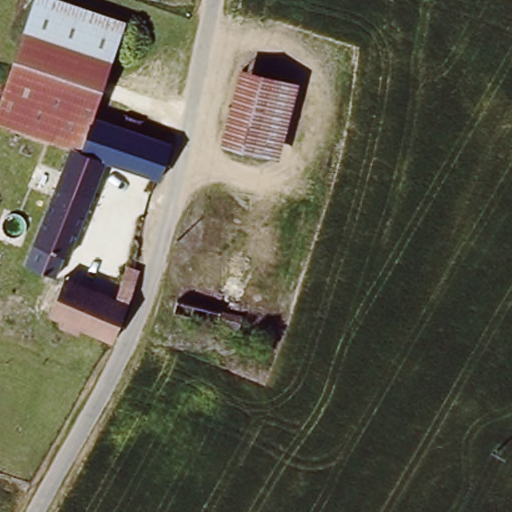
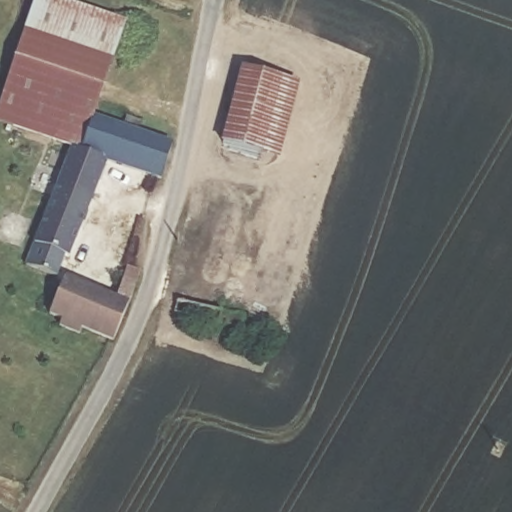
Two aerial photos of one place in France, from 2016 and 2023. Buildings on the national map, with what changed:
unchanged [(92,116),(79,152),(70,149),(0,124),(0,97),(36,0),(59,0),(125,25),(92,116)]
unchanged [(242,70),(298,85),(279,157),(222,142),(242,70)]
unchanged [(108,338),(85,327),(80,337),(61,327),(65,320),(42,308),(54,280),(25,265),(70,149),(79,152),(92,116),(120,127),(125,114),(141,120),(137,132),(165,142),(174,145),(164,182),(107,161),(70,260),(64,257),(58,273),(115,294),(125,266),(139,271),(112,340),(108,338)]

